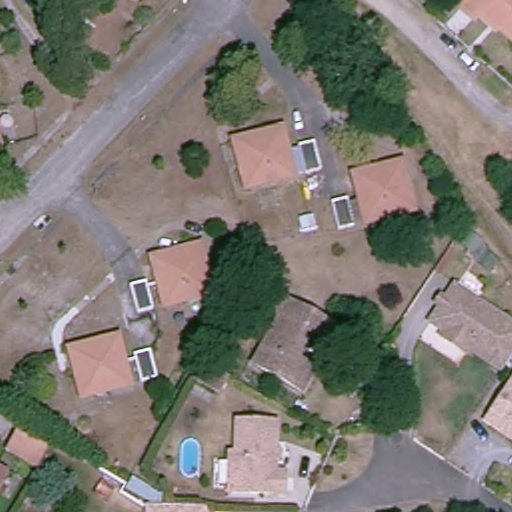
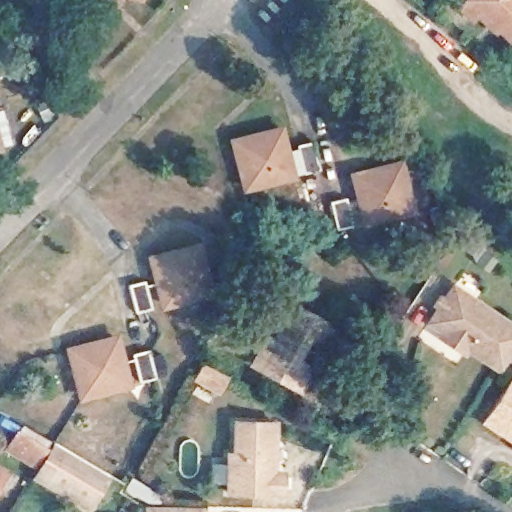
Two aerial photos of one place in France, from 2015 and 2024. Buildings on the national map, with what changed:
unchanged [(133,0),(141,0),(140,2),(133,0)]
unchanged [(481,12),(474,21),(462,9),(470,0),(512,0),(512,43),(481,12)]
unchanged [(287,175),(239,184),(235,164),(229,138),(238,137),(278,130),(287,175)]
unchanged [(315,169),(298,173),(292,146),(309,141),(315,169)]
unchanged [(369,217),(359,174),(397,165),(405,163),(412,192),(416,207),(369,217)]
unchanged [(355,195),(361,225),(343,228),(337,198),(355,195)]
unchanged [(164,304),(153,258),(190,250),(200,248),(205,272),(210,294),(164,304)]
unchanged [(152,308),(133,312),(127,283),(146,280),(152,308)]
unchanged [(500,363),(464,339),(453,341),(441,333),(438,324),(425,317),(449,281),(512,323),(512,344),(500,363)]
unchanged [(334,341),(312,330),(298,353),(315,365),(304,385),(256,359),(281,312),(276,308),(282,294),(298,303),(342,327),(334,341)]
unchanged [(129,383),(81,395),(76,375),(69,351),(77,349),(117,339),(129,383)]
unchanged [(150,349),(156,376),(140,380),(133,353),(150,349)]
unchanged [(222,398),(198,386),(209,361),(234,375),(222,398)]
unchanged [(507,444),(510,440),(479,417),(506,376),(512,365),(512,448),(507,444)]
unchanged [(273,421),(273,468),(281,468),(282,489),(228,489),(228,455),(229,447),(236,446),(235,419),(273,421)]
unchanged [(17,431),(21,424),(48,440),(43,447),(31,466),(6,451),(17,431)]
new [(89,511),(31,478),(53,442),(109,476),(89,511)]
unchanged [(0,471),(0,470),(1,470),(0,471)]
new [(144,512),(144,506),(203,507),(205,512),(144,512)]

